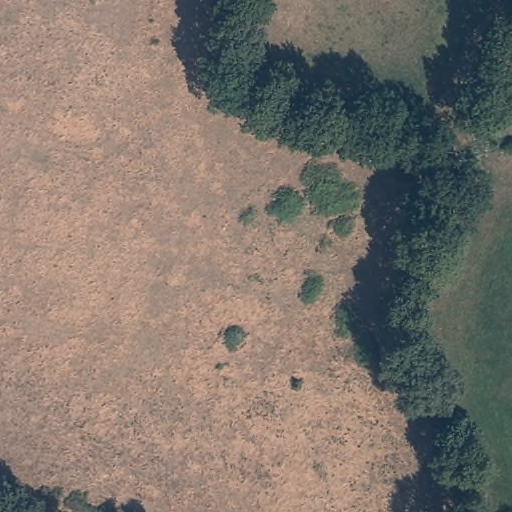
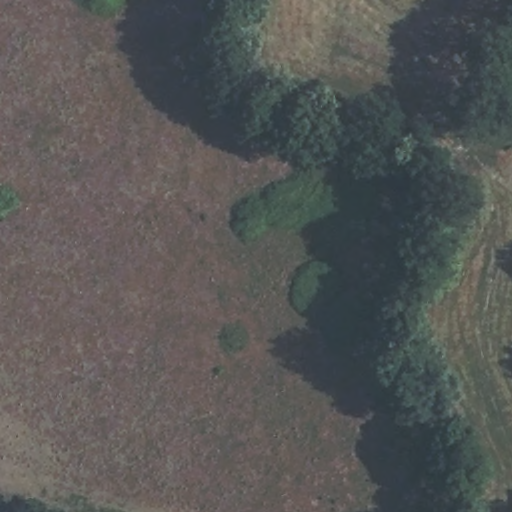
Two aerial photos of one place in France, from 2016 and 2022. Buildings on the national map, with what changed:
[]

